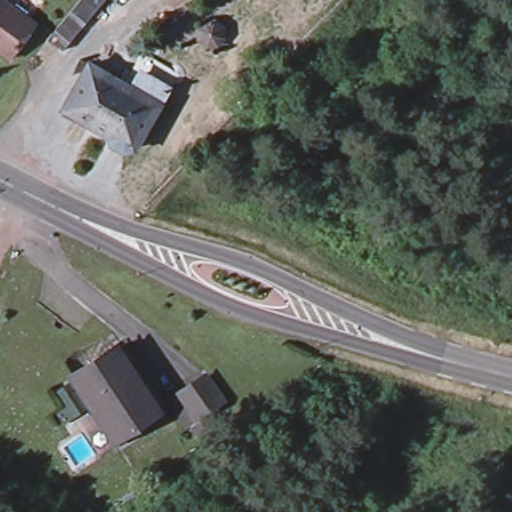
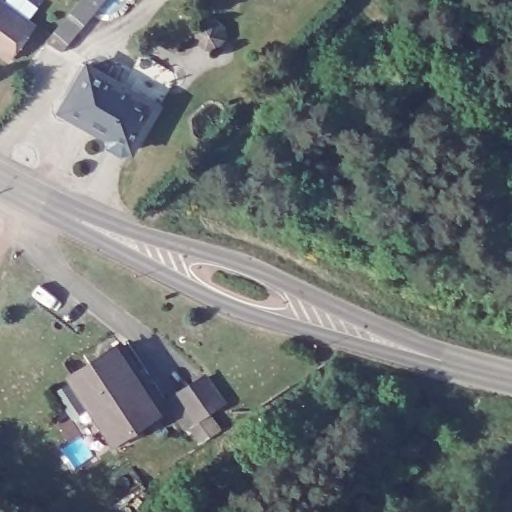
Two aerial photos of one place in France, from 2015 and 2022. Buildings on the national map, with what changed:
unchanged [(38,27),(11,61),(0,53),(0,0),(2,0),(38,27)]
unchanged [(65,49),(48,40),(82,0),(107,0),(65,49)]
unchanged [(68,115),(83,88),(75,84),(86,64),(131,89),(138,77),(164,92),(158,104),(132,150),(68,115)]
unchanged [(151,415),(109,442),(68,378),(114,348),(136,381),(156,412),(151,415)]
unchanged [(197,380),(215,407),(189,424),(171,396),(197,380)]

